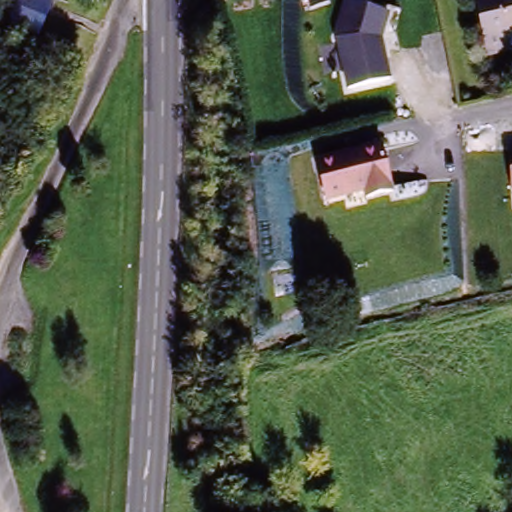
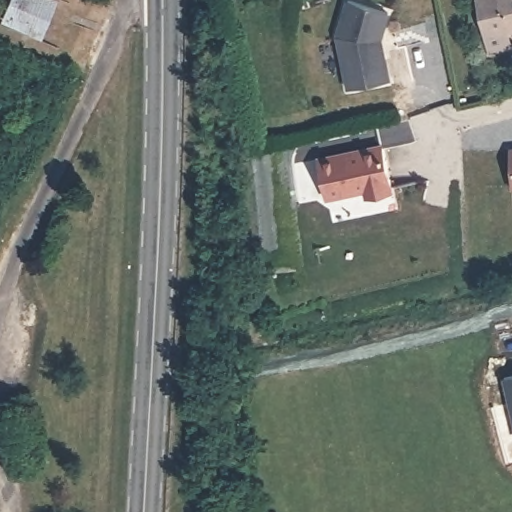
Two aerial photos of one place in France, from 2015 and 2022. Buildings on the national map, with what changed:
unchanged [(48,39),(8,35),(11,0),(23,0),(51,2),(48,39)]
unchanged [(512,41),(511,41),(512,49),(512,59),(491,63),(479,3),(494,0),(512,0),(512,41)]
unchanged [(346,87),(338,30),(348,2),(388,13),(384,31),(391,74),(346,87)]
unchanged [(392,191),(368,193),(366,187),(324,195),(319,153),(382,139),(392,191)]
new [(512,427),(499,374),(512,371),(512,427)]

